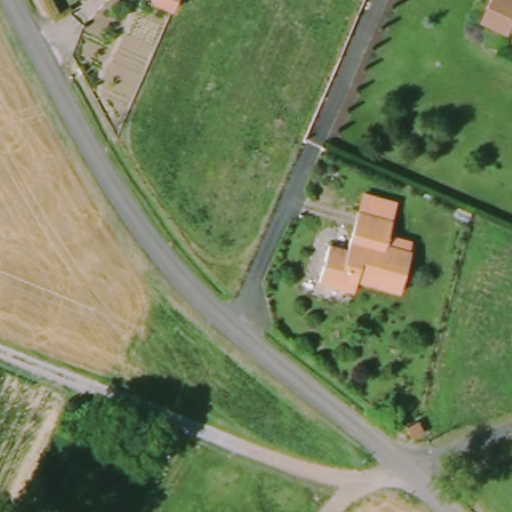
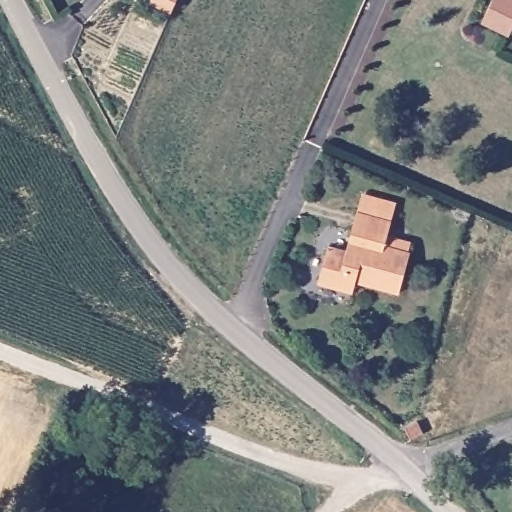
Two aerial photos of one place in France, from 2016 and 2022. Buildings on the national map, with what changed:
unchanged [(157,0),(176,0),(173,7),(157,0)]
unchanged [(479,21),(490,0),(512,0),(512,27),(509,33),(479,21)]
unchanged [(341,288),(314,281),(324,244),(342,249),(353,212),(355,201),(390,211),(387,220),(380,245),(405,250),(395,291),(352,278),(348,290),(341,288)]
unchanged [(408,435),(404,426),(415,420),(422,433),(412,438),(408,435)]

